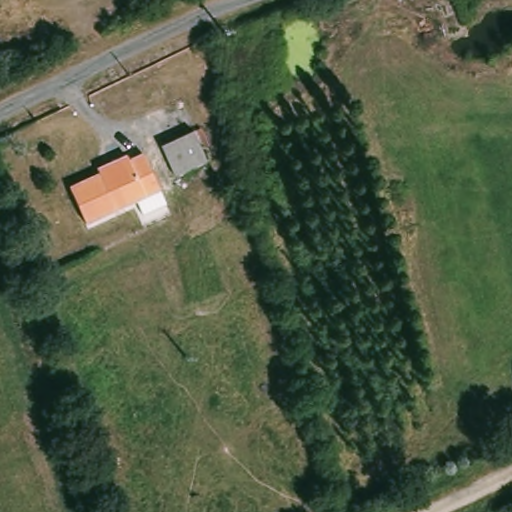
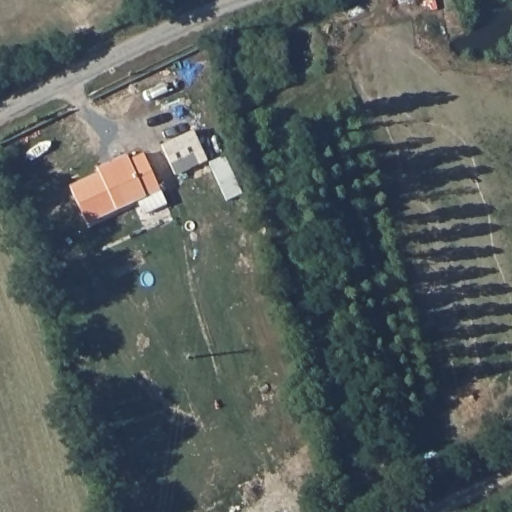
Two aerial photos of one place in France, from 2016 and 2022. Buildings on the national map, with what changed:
unchanged [(164,149),(195,134),(205,130),(217,158),(207,163),(177,177),(164,149)]
unchanged [(109,163),(128,153),(131,160),(146,153),(162,189),(87,223),(71,187),(112,169),(109,163)]

